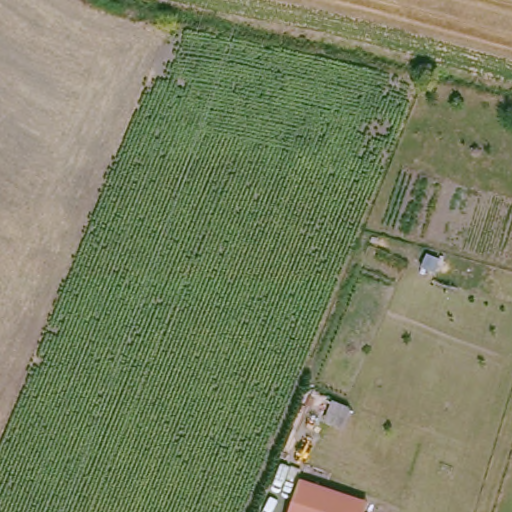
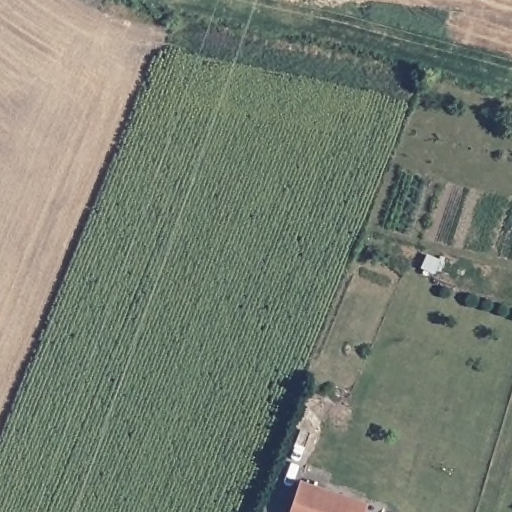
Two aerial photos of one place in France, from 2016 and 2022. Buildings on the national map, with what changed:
unchanged [(371,500),(368,512),(289,512),(302,476),(371,500)]

